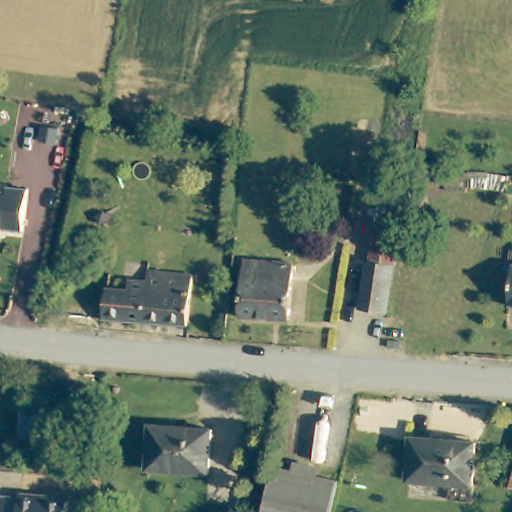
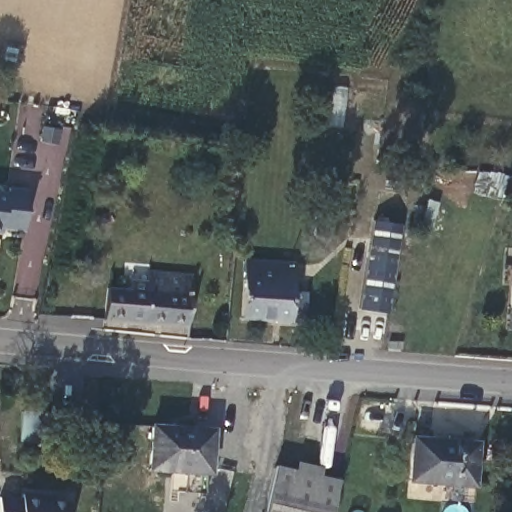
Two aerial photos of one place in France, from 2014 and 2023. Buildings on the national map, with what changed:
unchanged [(21,235),(0,234),(0,196),(5,196),(6,191),(25,194),(21,235)]
unchanged [(128,209),(128,214),(123,213),(124,208),(128,209)]
unchanged [(367,266),(372,225),(397,227),(391,269),(367,266)]
unchanged [(287,318),(239,314),(243,260),(290,263),(287,318)]
unchanged [(363,266),(367,266),(391,269),(384,316),(357,312),(363,266)]
unchanged [(512,270),(512,305),(509,304),(512,270)]
unchanged [(184,331),(101,324),(104,294),(125,295),(126,285),(143,286),(144,277),(189,280),(184,331)]
unchanged [(54,445),(17,443),(18,411),(55,413),(54,445)]
unchanged [(210,477),(152,472),(155,428),(213,432),(210,477)]
unchanged [(408,478),(411,434),(475,438),(472,483),(408,478)]
unchanged [(265,512),(276,466),(340,481),(333,512),(265,512)]
unchanged [(512,479),(512,481),(511,481),(512,479)]
unchanged [(18,498),(19,493),(70,497),(68,512),(0,512),(0,497),(18,498)]

